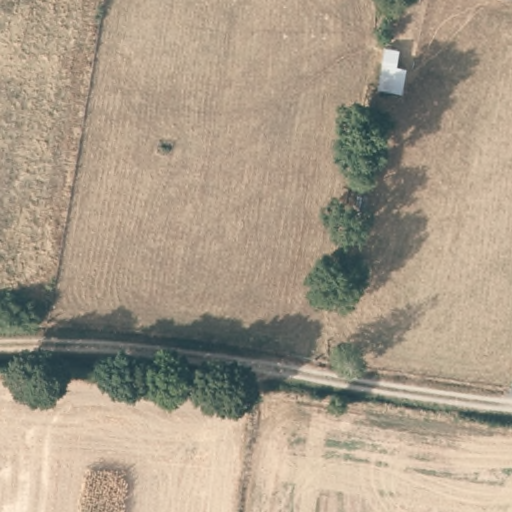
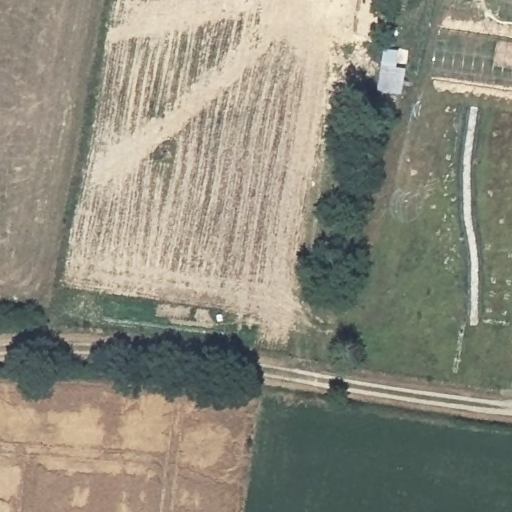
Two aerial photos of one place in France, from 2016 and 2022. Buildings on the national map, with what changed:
unchanged [(402,68),(396,94),(376,90),(380,65),(402,68)]

